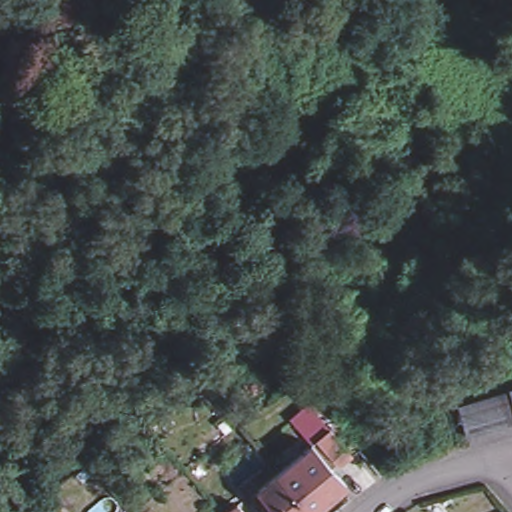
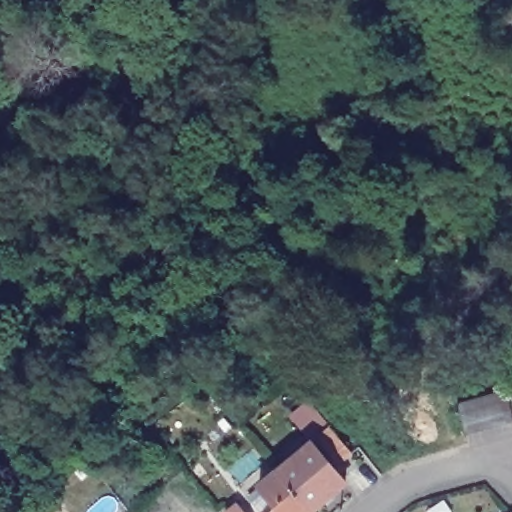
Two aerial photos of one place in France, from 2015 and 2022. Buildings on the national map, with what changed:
unchanged [(329,428),(353,454),(342,464),(318,437),(329,428)]
unchanged [(314,442),(350,482),(312,512),(287,482),(279,472),(314,442)]
unchanged [(312,512),(274,512),(280,507),(262,486),(279,472),(287,482),(312,512)]
unchanged [(247,512),(229,512),(240,505),(247,512)]

